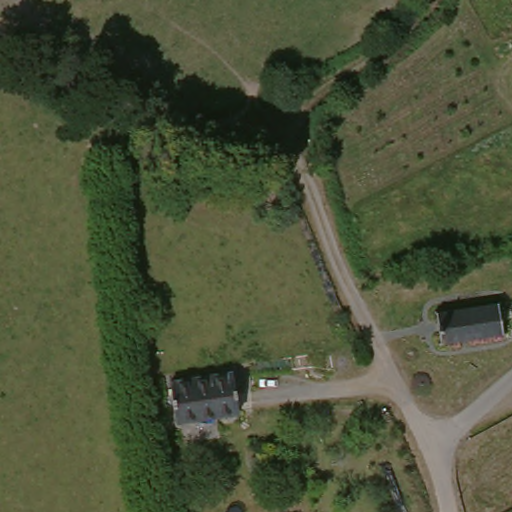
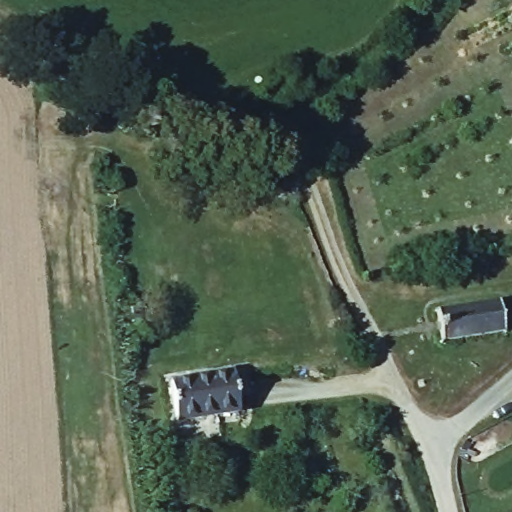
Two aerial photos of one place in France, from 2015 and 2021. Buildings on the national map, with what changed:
unchanged [(495,302),(498,332),(438,341),(433,313),(495,302)]
unchanged [(229,368),(236,406),(177,417),(170,379),(229,368)]

